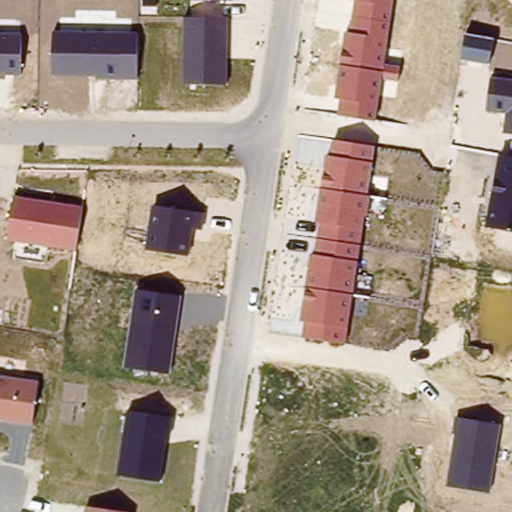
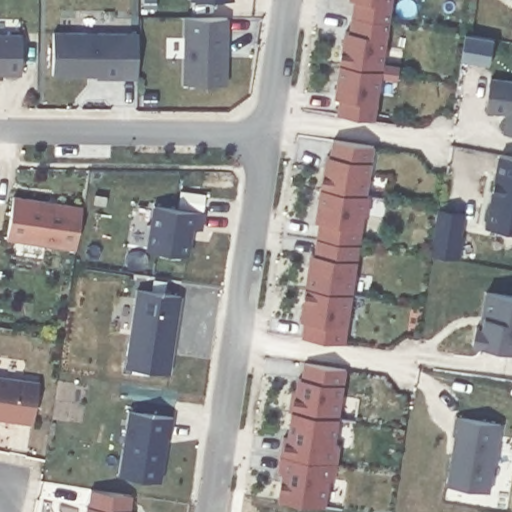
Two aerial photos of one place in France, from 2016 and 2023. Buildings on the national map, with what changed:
unchanged [(335,96),(344,32),(349,32),(354,0),(393,0),(385,65),(400,66),(397,80),(382,79),(377,120),(338,115),(340,97),(335,96)]
unchanged [(186,16),(228,19),(226,84),(185,85),(186,16)]
unchanged [(55,30),(137,34),(137,80),(97,79),(98,76),(53,77),(55,30)]
unchanged [(20,34),(20,75),(0,75),(0,34),(20,34)]
unchanged [(512,81),(512,133),(505,132),(507,114),(487,112),(490,77),(512,81)]
unchanged [(305,321),(300,320),(310,255),(315,256),(320,222),(315,221),(326,155),(330,156),(332,139),(375,145),(347,342),(303,337),(305,321)]
unchanged [(512,156),(512,230),(486,225),(499,153),(512,156)]
unchanged [(13,197),(82,209),(77,250),(7,240),(13,197)]
unchanged [(153,206),(204,215),(202,230),(191,229),(187,255),(146,249),(153,206)]
new [(461,236),(464,237),(460,259),(432,255),(438,209),(466,214),(461,236)]
unchanged [(136,290),(181,297),(168,375),(124,365),(136,290)]
new [(475,323),(477,324),(485,290),(512,296),(512,349),(472,343),(475,323)]
new [(338,419),(335,445),(340,446),(335,480),(328,479),(325,507),(277,500),(282,472),(277,472),(282,437),(287,438),(290,411),(288,410),(292,391),(295,392),(297,378),(302,380),(304,363),(347,370),(338,419)]
unchanged [(39,380),(33,425),(0,420),(0,375),(39,380)]
unchanged [(128,410),(170,417),(162,480),(118,474),(128,410)]
unchanged [(456,436),(454,435),(457,417),(501,425),(489,492),(447,485),(456,436)]
unchanged [(85,505),(124,512),(84,512),(85,505)]

